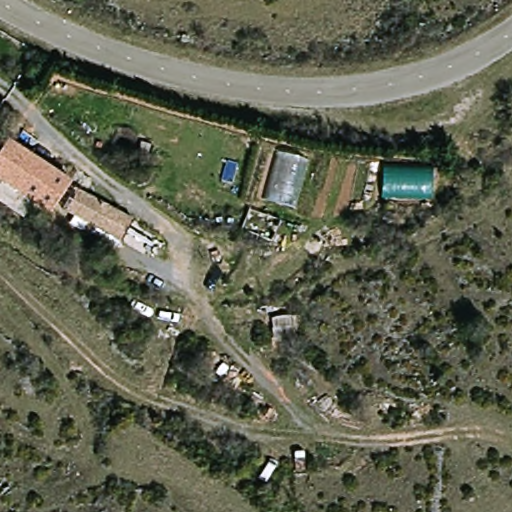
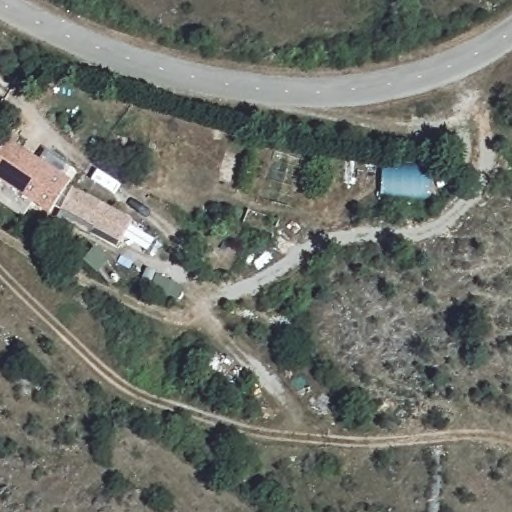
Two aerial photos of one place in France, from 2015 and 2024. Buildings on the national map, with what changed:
unchanged [(23,216),(0,200),(0,153),(10,141),(71,182),(52,211),(33,202),(23,216)]
unchanged [(308,160),(293,207),(264,197),(280,153),(308,160)]
unchanged [(383,166),(432,166),(432,199),(382,197),(383,166)]
unchanged [(75,189),(142,220),(133,244),(65,214),(75,189)]

